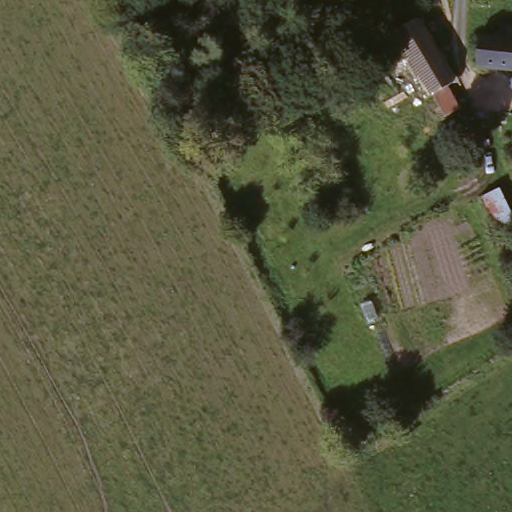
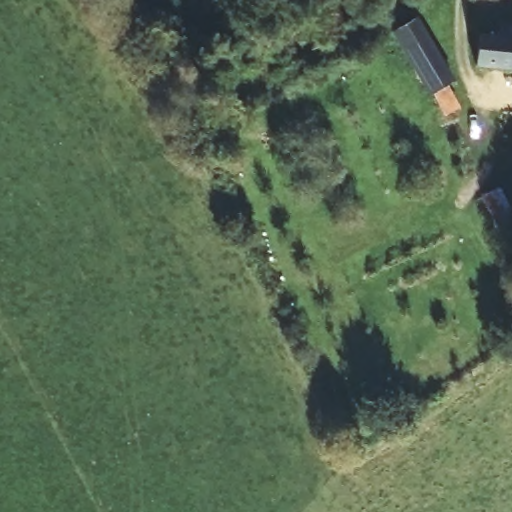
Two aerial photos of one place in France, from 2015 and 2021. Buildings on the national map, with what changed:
unchanged [(496,6),(462,7),(462,0),(496,0),(496,6)]
unchanged [(461,94),(453,98),(468,122),(448,134),(444,128),(395,46),(422,30),(461,94)]
unchanged [(512,71),(473,69),(480,38),(512,41),(512,71)]
unchanged [(512,239),(483,193),(502,182),(512,198),(512,239)]

